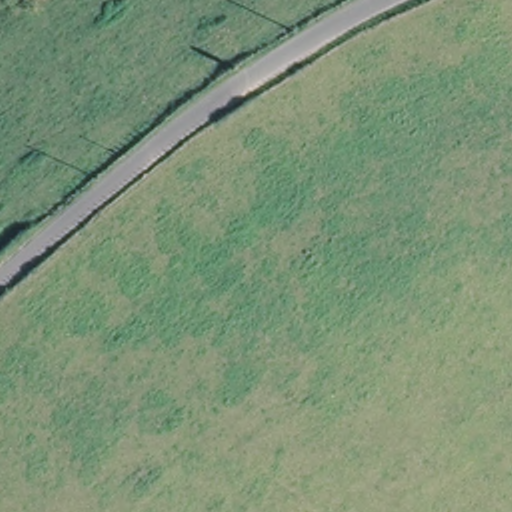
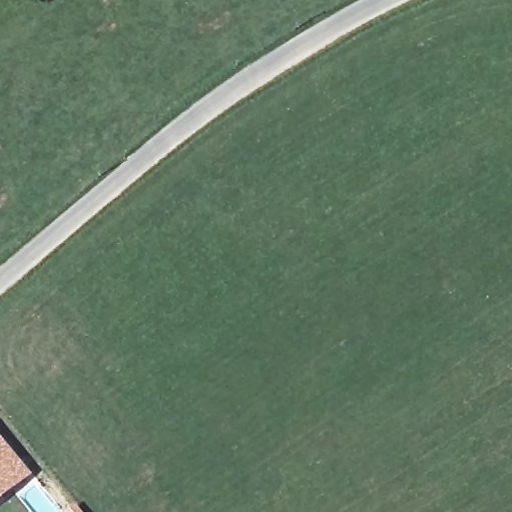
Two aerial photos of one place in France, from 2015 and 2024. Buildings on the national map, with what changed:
new [(34,475),(0,502),(0,434),(34,475)]

